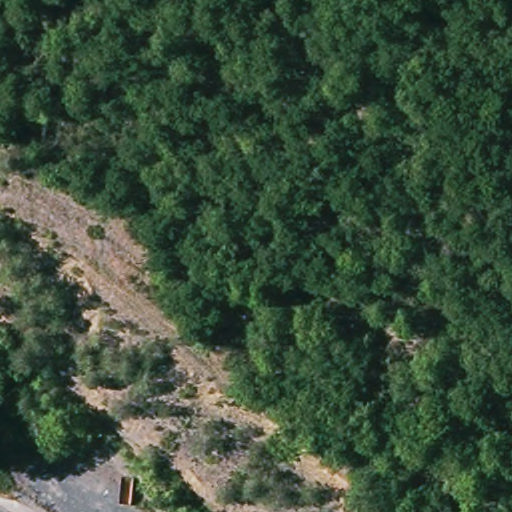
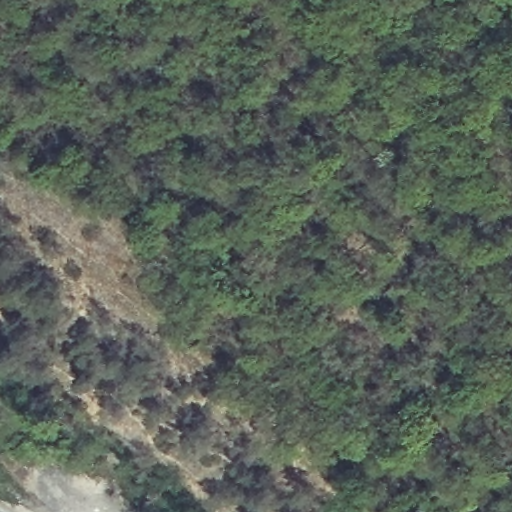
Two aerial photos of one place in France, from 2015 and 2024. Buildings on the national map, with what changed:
[]

